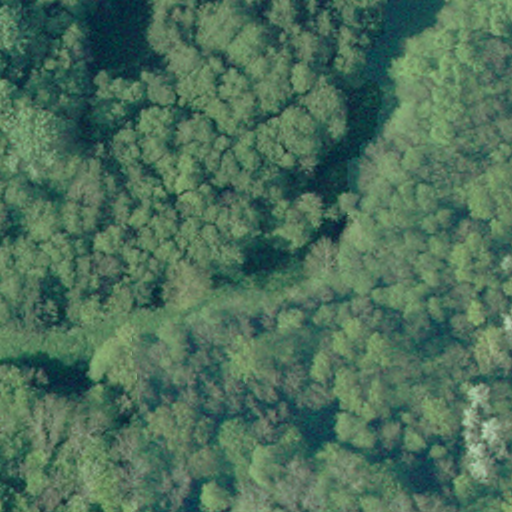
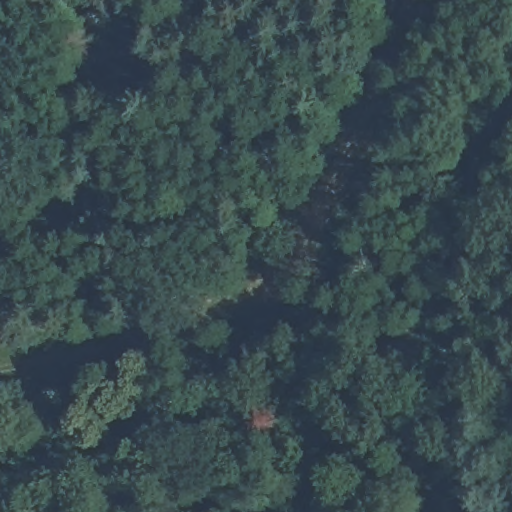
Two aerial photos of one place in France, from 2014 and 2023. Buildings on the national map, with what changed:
[]

